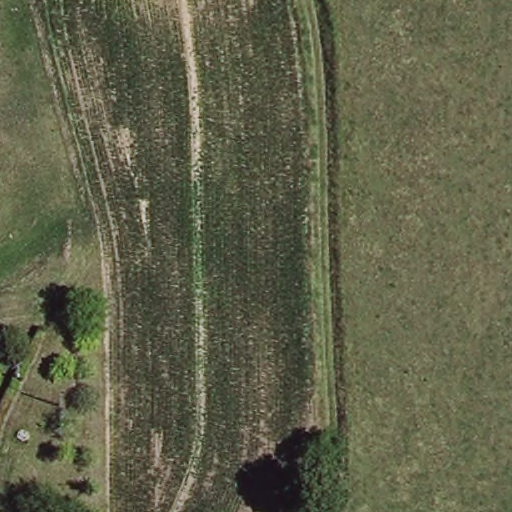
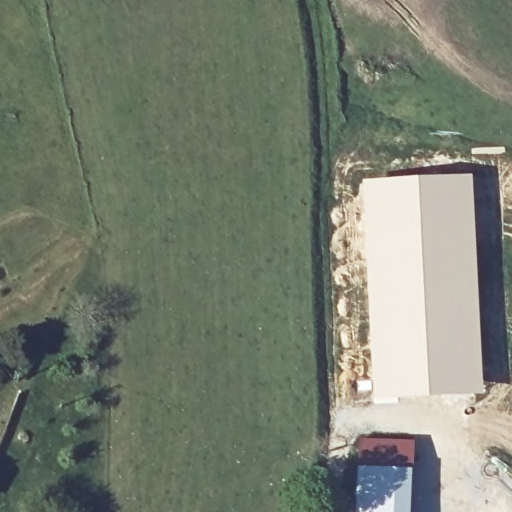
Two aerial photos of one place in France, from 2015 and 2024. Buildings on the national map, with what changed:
new [(473,174),(485,393),(373,402),(360,179),(473,174)]
new [(411,512),(356,512),(359,439),(415,441),(411,512)]

